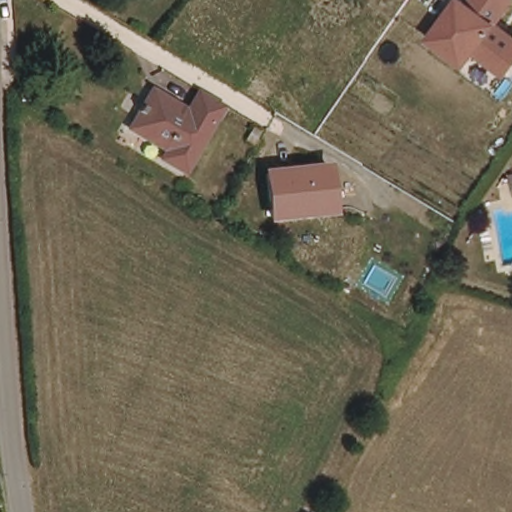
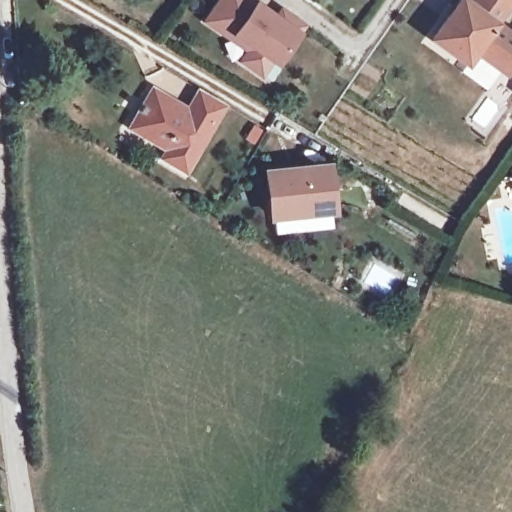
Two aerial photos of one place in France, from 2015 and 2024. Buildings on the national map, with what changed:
new [(216,0),(257,0),(275,13),(280,6),(307,25),(302,34),(277,67),(272,63),(262,79),(238,63),(246,52),(202,22),(216,0)]
unchanged [(477,55),(468,68),(428,40),(455,0),(465,0),(468,3),(470,0),(512,0),(512,5),(499,24),(512,33),(512,71),(508,77),(477,55)]
unchanged [(188,109),(197,94),(222,108),(187,170),(162,156),(167,147),(135,129),(157,91),(188,109)]
unchanged [(267,174),(327,168),(333,209),(272,215),(267,174)]
unchanged [(512,174),(512,191),(507,176),(512,174)]

